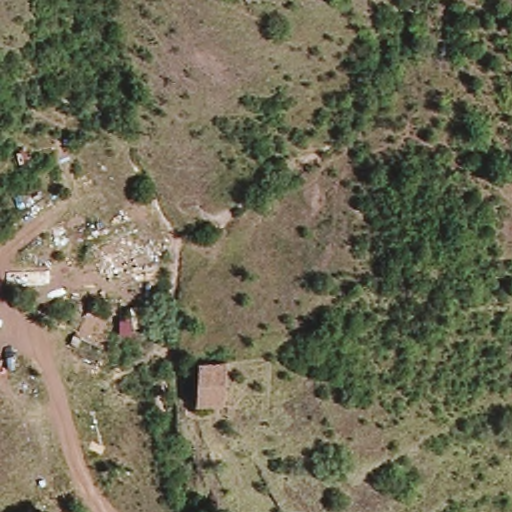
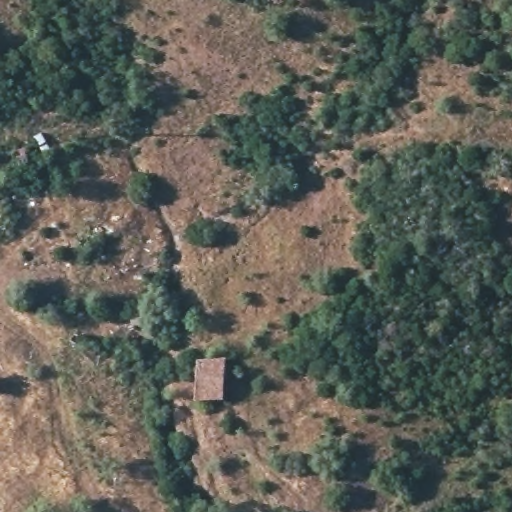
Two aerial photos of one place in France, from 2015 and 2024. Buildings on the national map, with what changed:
unchanged [(196,394),(199,358),(229,360),(225,396),(196,394)]

